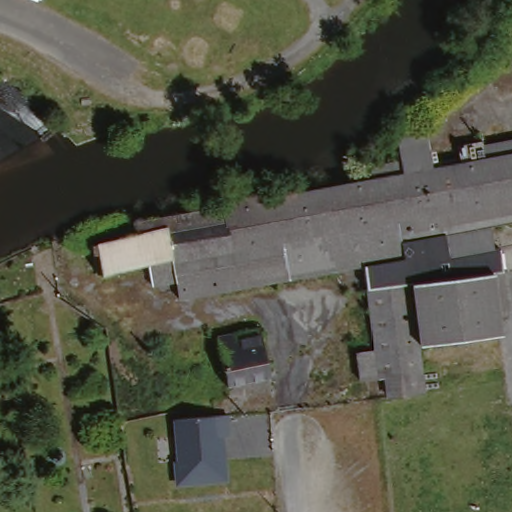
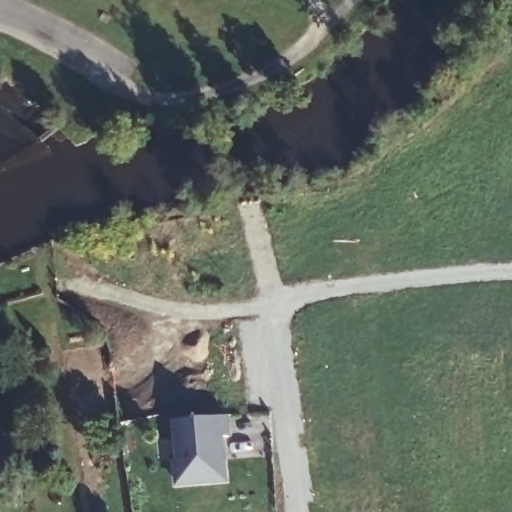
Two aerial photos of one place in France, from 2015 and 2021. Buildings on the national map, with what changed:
demolished [(367,261),(257,277),(179,288),(176,272),(149,276),(145,257),(98,266),(92,237),(116,233),(114,221),(138,216),(138,212),(260,187),(262,192),(336,180),(407,167),(403,143),(434,139),(438,160),(466,155),(465,144),(485,141),(488,144),(512,140),(512,222),(493,225),(497,247),(502,248),(503,271),(495,272),(500,333),(420,341),(416,276),(411,277),(368,278),(367,261)]
demolished [(411,277),(418,390),(386,392),(386,372),(360,375),(356,373),(357,346),(371,345),(368,278),(411,277)]
demolished [(265,330),(275,380),(233,386),(224,336),(265,330)]
unchanged [(174,416),(234,413),(235,434),(230,436),(231,477),(177,485),(174,416)]

